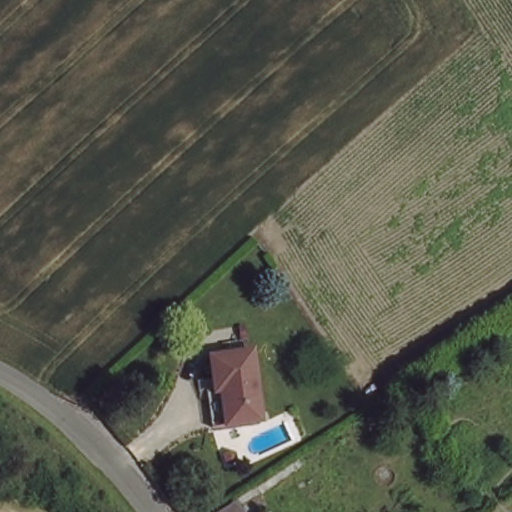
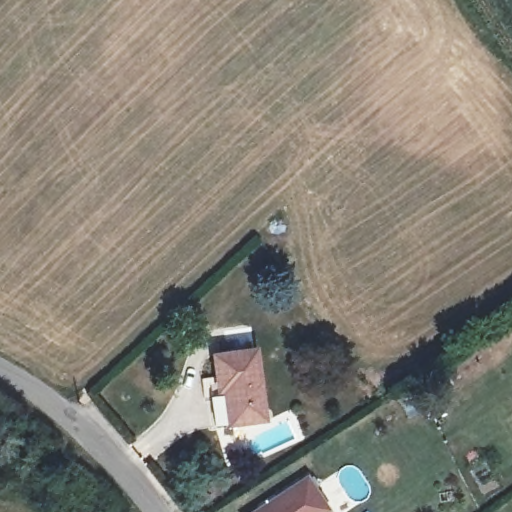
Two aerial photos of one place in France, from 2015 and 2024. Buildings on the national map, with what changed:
unchanged [(212,393),(204,393),(201,372),(221,369),(217,347),(257,342),(269,413),(230,419),(217,421),(212,393)]
new [(307,474),(329,509),(325,512),(249,512),(307,474)]
demolished [(243,497),(252,512),(217,512),(243,497)]

